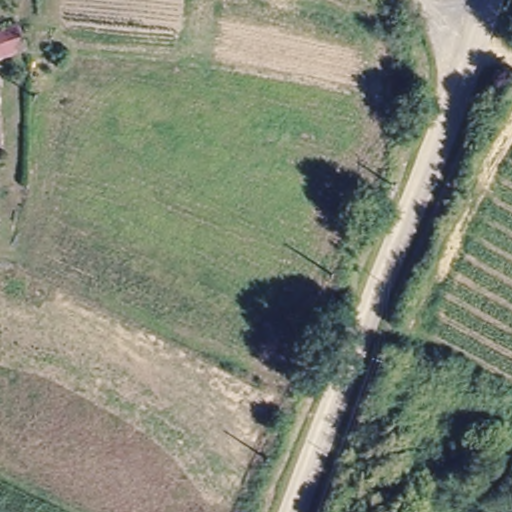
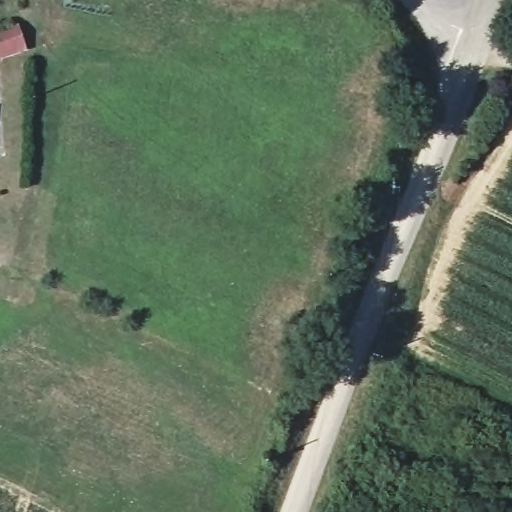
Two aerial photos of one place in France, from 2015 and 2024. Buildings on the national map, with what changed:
unchanged [(19,43),(0,49),(0,22),(11,19),(19,43)]

